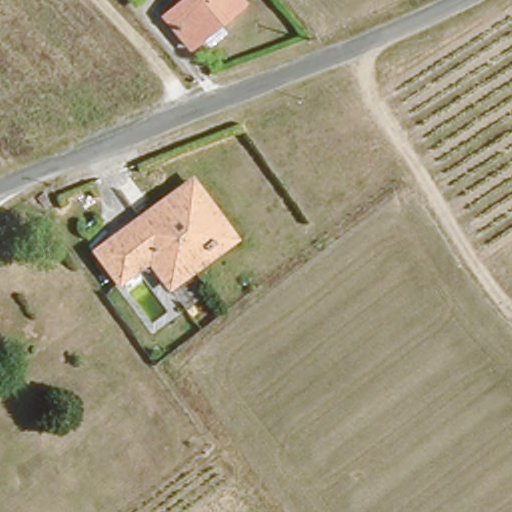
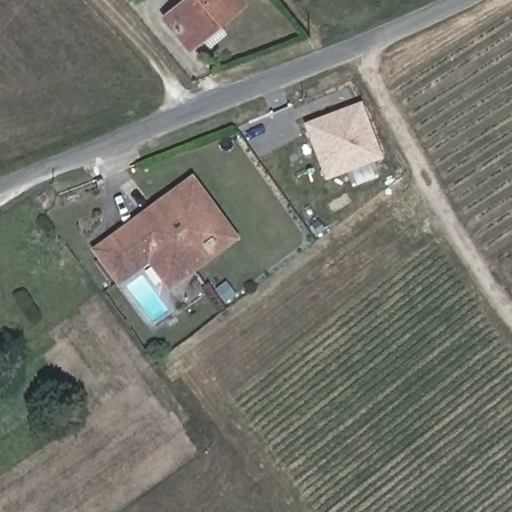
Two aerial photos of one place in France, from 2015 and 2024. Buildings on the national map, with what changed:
unchanged [(219,20),(213,15),(186,40),(161,13),(177,0),(239,0),(219,20)]
new [(369,166),(374,178),(354,185),(351,173),(324,183),(302,125),(361,102),(383,161),(369,166)]
unchanged [(89,242),(140,205),(187,173),(196,187),(99,257),(89,242)]
unchanged [(196,187),(229,232),(162,279),(143,252),(112,275),(99,257),(196,187)]

